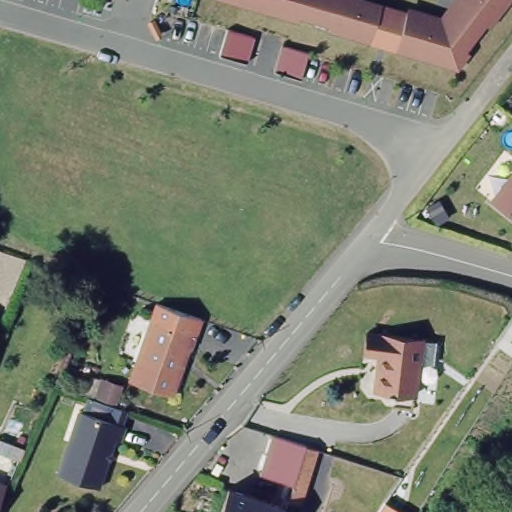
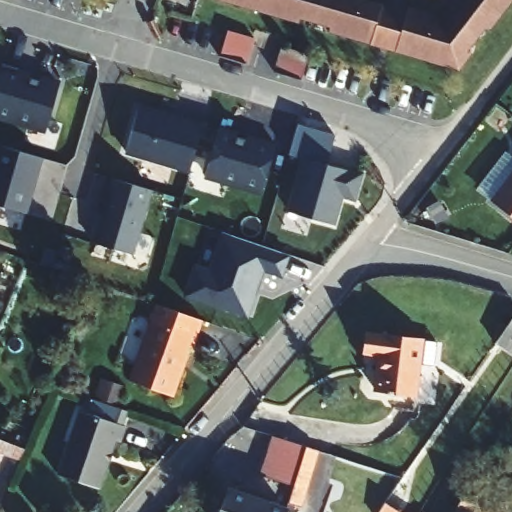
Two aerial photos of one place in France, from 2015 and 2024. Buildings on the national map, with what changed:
unchanged [(454,4),(459,3),(460,4),(463,0),(511,0),(506,6),(489,28),(484,24),(464,49),(470,54),(458,69),(329,31),(331,25),(301,16),(299,22),(221,0),(355,0),(438,24),(454,4)]
unchanged [(229,31),(255,39),(247,66),(221,58),(229,31)]
unchanged [(310,55),(302,81),(276,74),(284,47),(310,55)]
new [(60,81),(45,135),(0,121),(0,68),(1,66),(60,81)]
new [(201,125),(188,174),(121,154),(134,103),(201,125)]
new [(301,160),(288,157),(297,125),(334,136),(326,166),(363,175),(356,202),(341,200),(335,227),(286,213),(301,160)]
new [(274,144),(259,197),(201,180),(217,127),(274,144)]
new [(41,160),(25,215),(0,208),(0,149),(41,160)]
new [(111,180),(151,192),(132,257),(92,243),(111,180)]
unchanged [(496,201),(512,180),(512,213),(496,201)]
new [(193,266),(208,270),(220,232),(290,258),(282,279),(263,274),(250,321),(183,299),(193,266)]
unchanged [(195,333),(190,350),(185,348),(168,393),(127,379),(150,317),(195,333)]
unchanged [(426,338),(441,340),(438,364),(423,362),(419,393),(380,389),(384,353),(368,351),(370,331),(426,338)]
unchanged [(512,334),(512,349),(505,345),(512,334)]
unchanged [(127,424),(122,439),(116,437),(99,487),(59,474),(80,410),(127,424)]
unchanged [(299,505),(287,501),(292,485),(293,484),(293,482),(260,472),(274,433),(307,444),(320,448),(299,505)]
unchanged [(3,485),(0,493),(0,483),(3,485)]
unchanged [(469,486),(512,508),(512,512),(455,512),(469,486)]
unchanged [(282,512),(219,512),(228,488),(284,507),(282,512)]
unchanged [(385,503),(399,512),(380,512),(385,503)]

